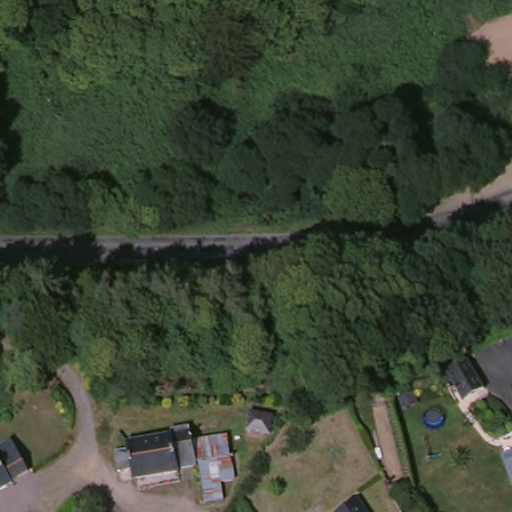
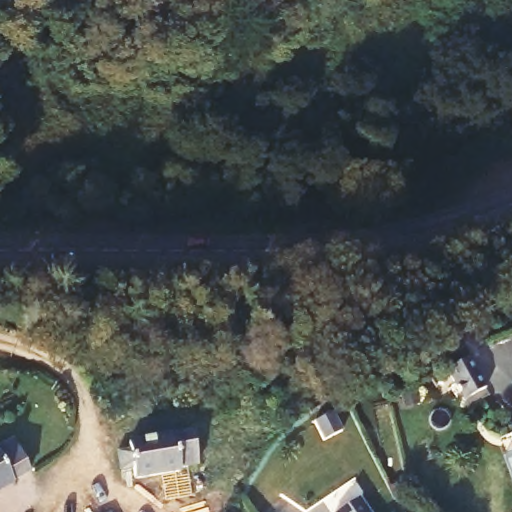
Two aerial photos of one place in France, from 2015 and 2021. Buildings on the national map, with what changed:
unchanged [(442,383),(461,364),(483,388),(484,390),(466,407),(456,397),(442,383)]
unchanged [(19,434),(37,470),(16,482),(19,488),(0,498),(0,444),(19,434)]
unchanged [(186,441),(211,437),(215,462),(243,456),(247,484),(234,485),(237,507),(216,511),(207,463),(189,468),(190,477),(145,484),(138,444),(182,434),(186,441)]
unchanged [(512,452),(512,480),(504,455),(512,452)]
unchanged [(368,512),(342,512),(361,500),(368,512)]

